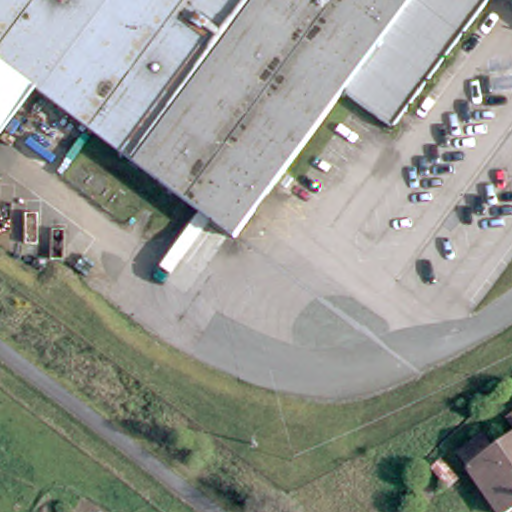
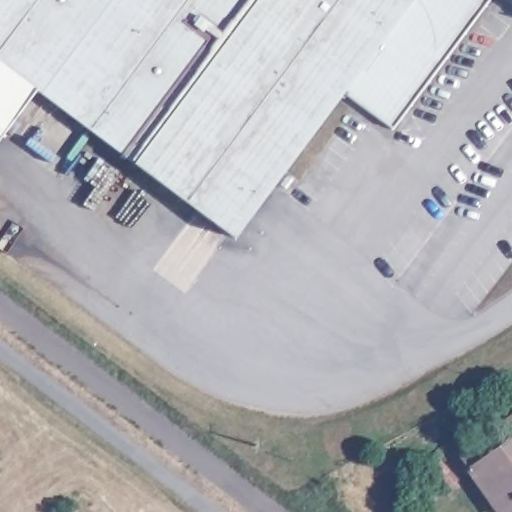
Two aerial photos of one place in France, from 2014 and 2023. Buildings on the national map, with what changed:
unchanged [(0,0),(485,0),(393,130),(342,97),(237,242),(33,96),(0,73),(0,0)]
unchanged [(0,73),(33,96),(0,139),(0,73)]
unchanged [(511,410),(512,412),(512,512),(501,512),(465,463),(454,447),(477,432),(487,448),(505,435),(495,422),(511,410)]

